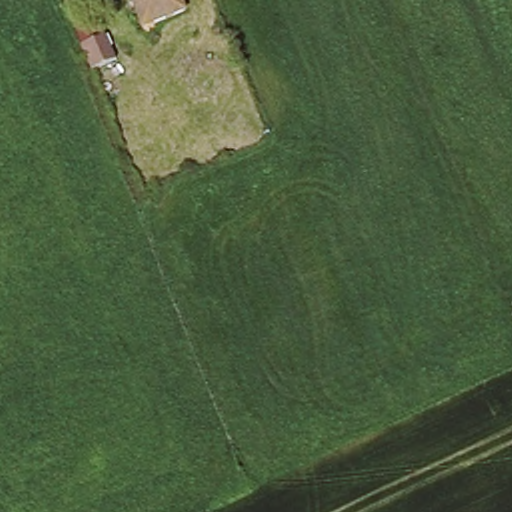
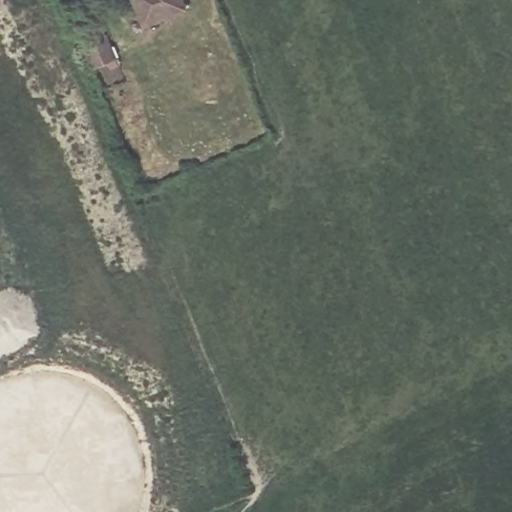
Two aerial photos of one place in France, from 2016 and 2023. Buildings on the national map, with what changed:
unchanged [(176,0),(181,13),(140,29),(129,0),(176,0)]
unchanged [(80,44),(102,35),(113,63),(92,71),(80,44)]

